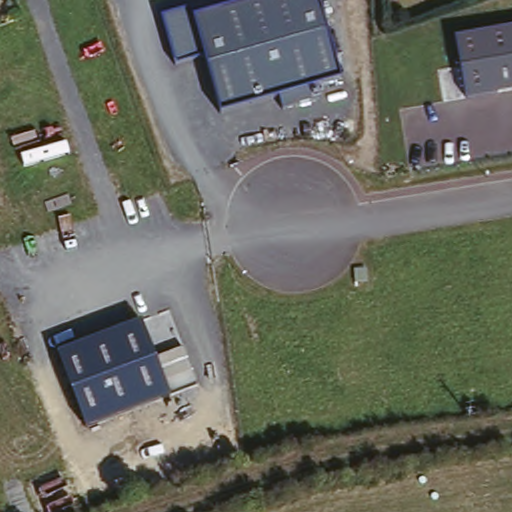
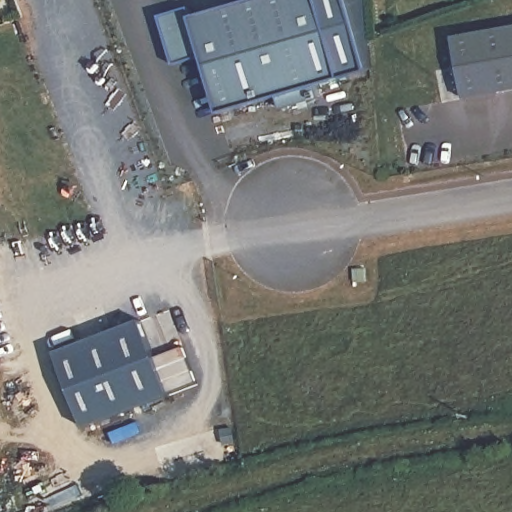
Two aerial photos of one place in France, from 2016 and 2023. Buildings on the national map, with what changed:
unchanged [(195,18),(260,0),(343,0),(363,72),(312,87),(316,100),(285,109),(279,96),(221,113),(204,56),(175,65),(160,17),(192,7),(195,18)]
unchanged [(455,38),(512,27),(512,90),(466,98),(455,38)]
unchanged [(157,358),(185,347),(200,383),(86,429),(56,351),(141,319),(157,358)]

